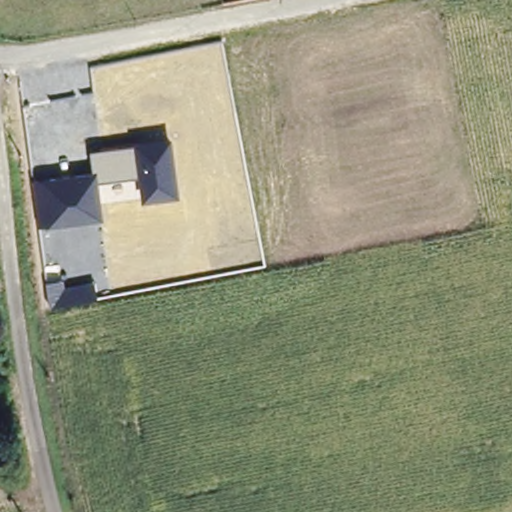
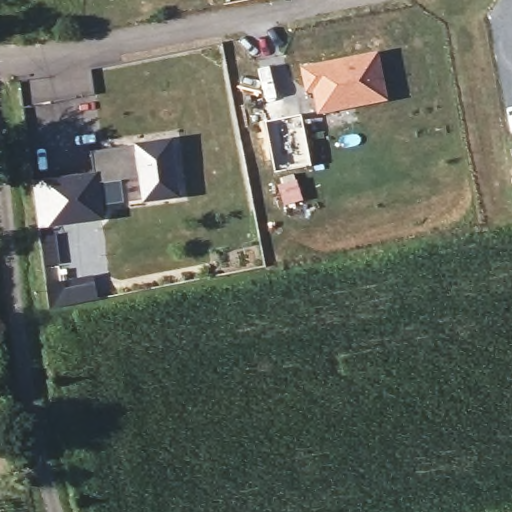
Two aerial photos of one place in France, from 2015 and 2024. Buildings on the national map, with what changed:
new [(379,50),(390,100),(316,115),(300,65),(379,50)]
new [(302,112),(312,164),(274,173),(263,121),(302,112)]
unchanged [(105,219),(49,226),(39,227),(33,179),(43,178),(95,172),(92,150),(135,144),(173,139),(180,196),(143,201),(140,176),(99,182),(105,219)]
unchanged [(64,281),(65,287),(95,282),(98,297),(50,308),(48,283),(64,281)]

